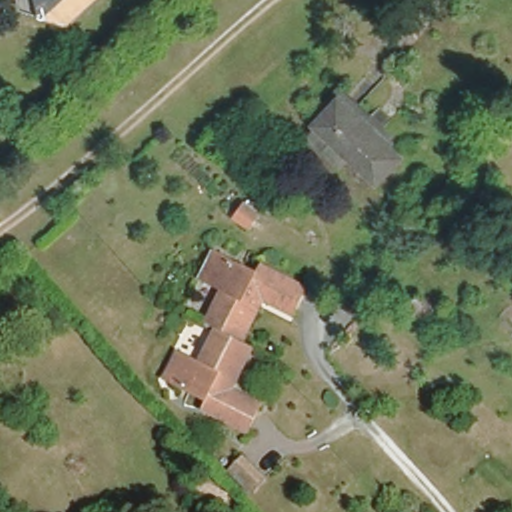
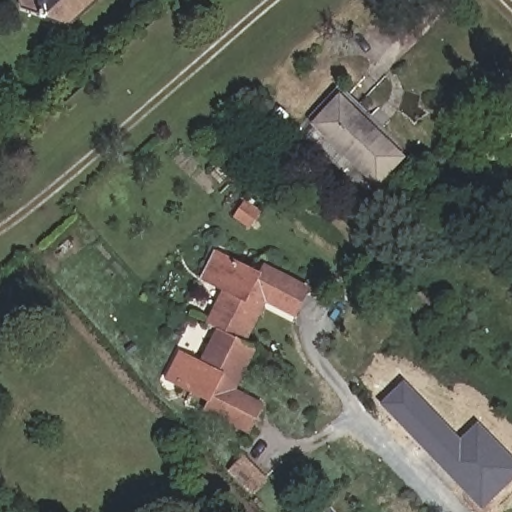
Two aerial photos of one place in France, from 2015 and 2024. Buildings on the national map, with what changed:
unchanged [(61,25),(33,21),(34,0),(97,0),(72,27),(61,25)]
unchanged [(337,87),(405,149),(376,178),(311,112),(337,87)]
unchanged [(262,214),(253,226),(240,218),(249,205),(262,214)]
unchanged [(218,394),(183,377),(173,371),(185,348),(195,353),(211,361),(228,329),(216,323),(220,314),(234,288),(216,279),(209,274),(221,251),(230,255),(283,282),(285,278),(270,271),(273,263),(311,283),(299,307),(270,292),(248,331),(261,338),(261,339),(241,381),(269,396),(255,424),(226,410),(213,403),(218,394)]
new [(461,439),(479,422),(512,458),(512,481),(483,510),(381,404),(405,381),(461,439)]
unchanged [(268,481),(255,493),(235,473),(248,460),(268,481)]

